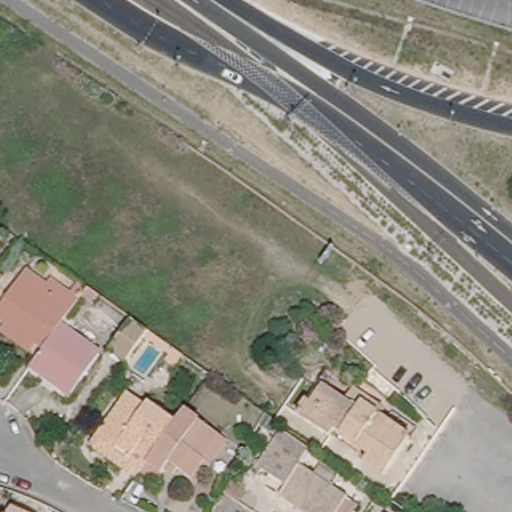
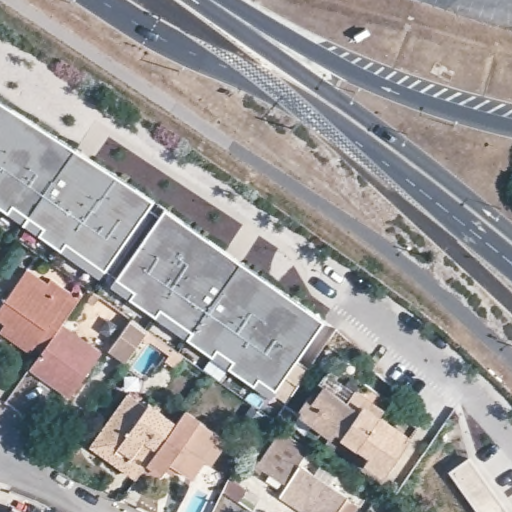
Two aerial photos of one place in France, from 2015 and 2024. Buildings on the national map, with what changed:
new [(325,318),(272,395),(0,209),(0,101),(150,198),(325,318)]
unchanged [(8,320),(0,315),(0,308),(22,276),(28,268),(48,283),(52,278),(72,291),(80,279),(91,286),(65,321),(45,348),(37,342),(30,352),(1,330),(8,320)]
unchanged [(150,328),(127,360),(112,348),(133,317),(150,328)]
unchanged [(32,366),(45,348),(65,321),(105,350),(72,396),(32,366)]
unchanged [(320,388),(317,386),(326,373),(357,395),(365,383),(392,403),(382,418),(413,441),(388,477),(367,462),(371,455),(337,430),(331,437),(300,415),(320,388)]
unchanged [(128,387),(147,400),(150,396),(178,415),(142,465),(138,471),(92,437),(128,387)]
unchanged [(167,463),(158,476),(142,465),(178,415),(188,402),(202,411),(202,414),(222,428),(230,434),(213,457),(207,453),(206,452),(194,470),(187,465),(180,460),(175,468),(167,463)]
unchanged [(288,483),(260,463),(282,429),(311,448),(302,463),(349,494),(349,496),(360,504),(355,512),(306,512),(281,494),(288,483)]
new [(470,459),(507,512),(480,512),(452,472),(470,459)]

